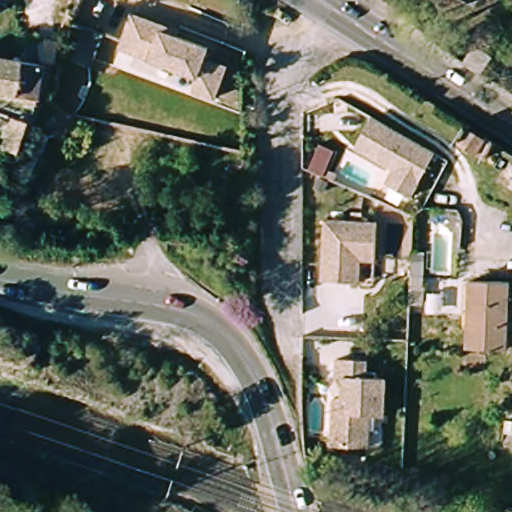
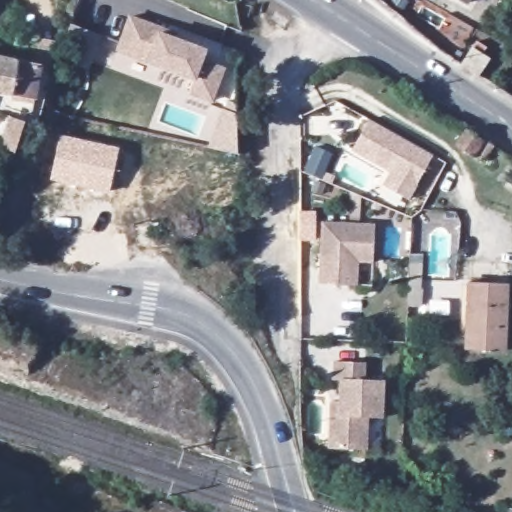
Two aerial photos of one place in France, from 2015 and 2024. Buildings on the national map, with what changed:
unchanged [(51,91),(80,15),(105,24),(76,101),(68,127),(49,120),(56,98),(49,96),(51,91)]
unchanged [(200,60),(222,68),(210,100),(188,91),(193,77),(116,49),(128,16),(166,29),(175,33),(173,38),(204,49),(200,60)]
unchanged [(28,34),(45,34),(46,62),(41,96),(0,89),(0,54),(28,59),(28,34)]
unchanged [(468,55),(479,61),(472,72),(462,65),(468,55)]
new [(26,121),(16,153),(0,148),(0,146),(10,115),(26,121)]
unchanged [(442,159),(416,202),(392,188),(400,174),(361,151),(380,121),(442,159)]
unchanged [(493,146),(482,162),(457,146),(467,130),(493,146)]
new [(120,147),(110,193),(50,180),(59,136),(120,147)]
unchanged [(375,222),(373,259),(357,258),(356,282),(319,280),(323,219),(375,222)]
unchanged [(512,285),(512,290),(506,352),(467,348),(474,282),(512,285)]
unchanged [(341,401),(343,379),(336,379),(337,361),(368,363),(366,380),(386,381),(384,418),(369,417),(367,450),(330,447),(332,414),(333,401),(341,401)]

